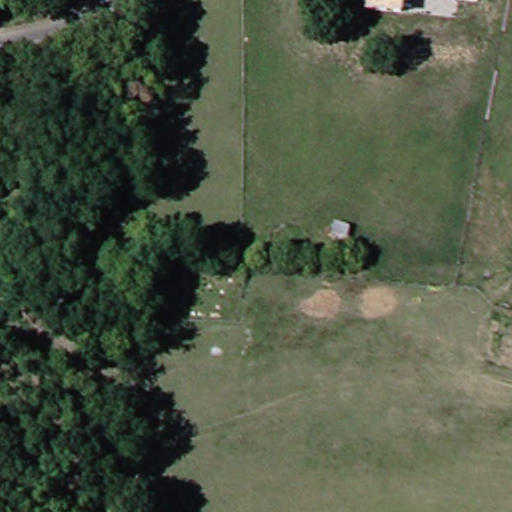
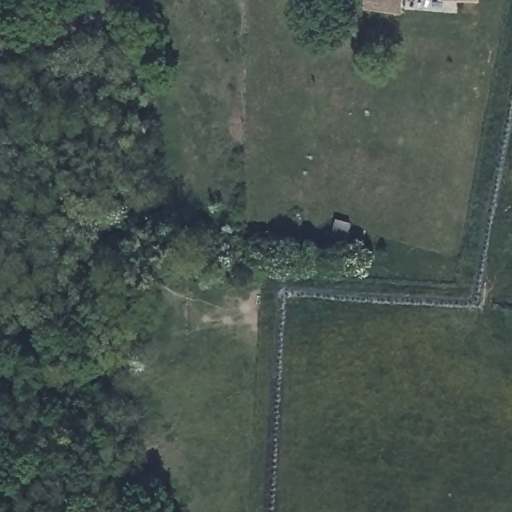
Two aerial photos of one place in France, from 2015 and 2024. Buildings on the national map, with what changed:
unchanged [(365,0),(403,0),(402,11),(365,6),(365,0)]
unchanged [(472,0),(480,0),(480,1),(472,0)]

